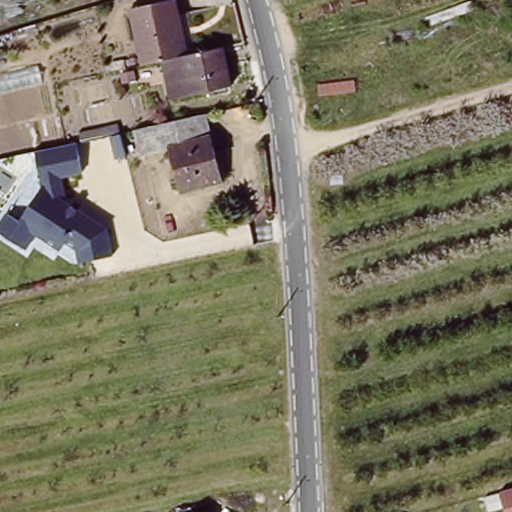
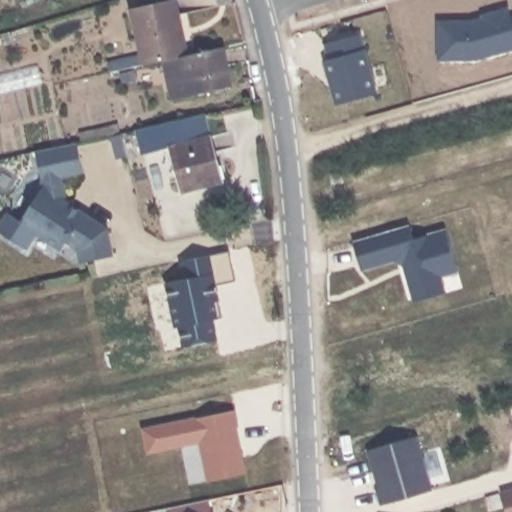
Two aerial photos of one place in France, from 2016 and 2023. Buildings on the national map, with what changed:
unchanged [(162,64),(150,67),(147,59),(137,11),(178,2),(188,49),(190,58),(227,50),(235,88),(197,97),(195,93),(170,99),(162,64)]
new [(335,103),(323,60),(328,58),(325,43),(361,34),(365,48),(377,92),(335,103)]
unchanged [(206,114),(224,185),(180,194),(170,148),(144,154),(138,129),(206,114)]
unchanged [(86,133),(106,129),(107,137),(87,141),(86,133)]
unchanged [(84,172),(62,176),(65,197),(106,224),(111,253),(77,259),(75,250),(34,233),(25,246),(0,232),(0,214),(4,208),(19,216),(43,178),(38,147),(77,140),(84,172)]
new [(409,228),(412,243),(445,233),(457,274),(440,280),(445,296),(414,305),(403,269),(395,263),(360,273),(352,245),(409,228)]
new [(186,276),(182,259),(232,248),(238,278),(217,284),(220,299),(215,300),(220,317),(215,318),(219,337),(185,345),(181,325),(177,325),(167,281),(186,276)]
new [(240,426),(237,427),(247,473),(210,481),(202,439),(150,451),(145,428),(237,408),(240,426)]
new [(432,494),(381,509),(377,493),(379,492),(367,454),(417,440),(432,494)]
unchanged [(512,512),(505,512),(497,487),(512,483),(512,512)]
new [(210,500),(213,512),(171,512),(170,508),(210,500)]

